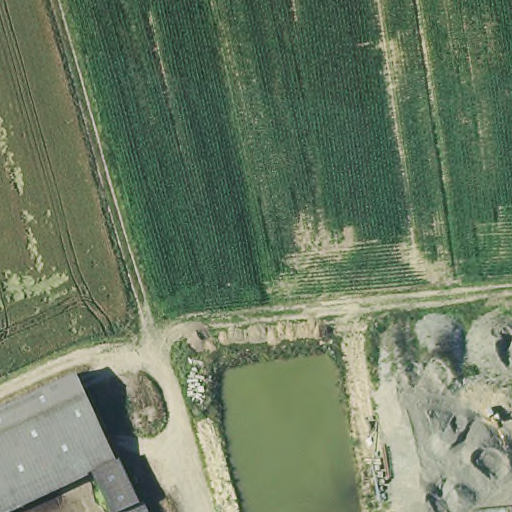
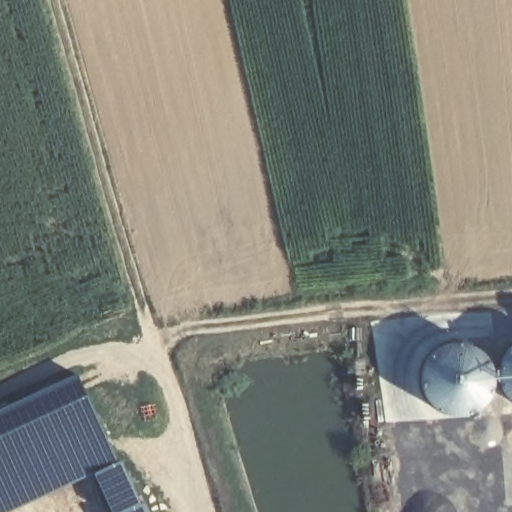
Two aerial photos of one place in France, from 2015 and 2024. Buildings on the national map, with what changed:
new [(501,388),(499,380),(494,380),(494,387),(491,396),(482,407),(472,413),(462,415),(452,415),(439,410),(430,404),(423,392),(421,375),(425,361),(435,350),(449,343),(461,341),(473,344),(482,350),(491,360),(495,371),(497,371),(499,357),(510,345),(512,343),(512,402),(507,398),(501,388)]
unchanged [(0,512),(0,409),(72,376),(112,461),(90,471),(1,512),(0,512)]
unchanged [(119,458),(138,500),(111,512),(107,512),(90,471),(112,461),(119,458)]
unchanged [(143,498),(149,512),(111,512),(138,500),(143,498)]

